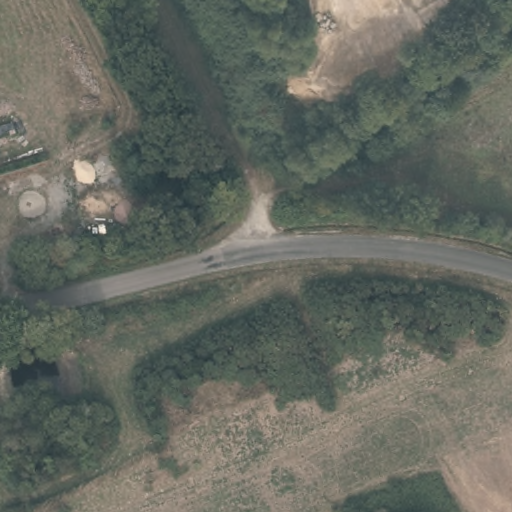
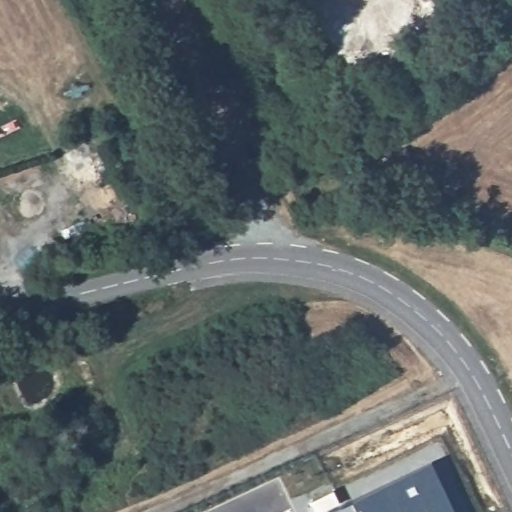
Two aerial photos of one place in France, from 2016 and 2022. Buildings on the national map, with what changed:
new [(457,512),(326,512),(433,461),(457,512)]

